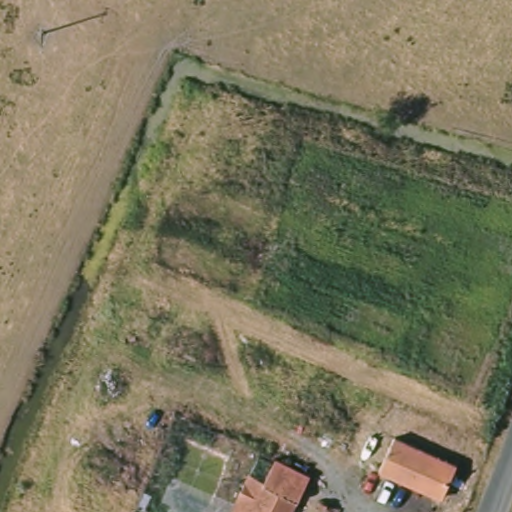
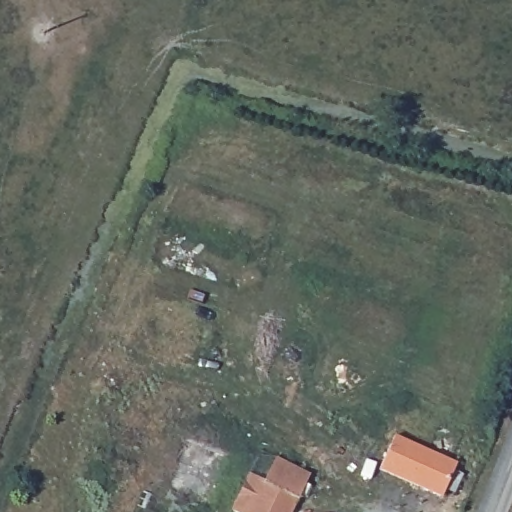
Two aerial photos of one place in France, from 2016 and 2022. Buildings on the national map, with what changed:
unchanged [(474,470),(466,490),(454,485),(451,493),(386,465),(399,436),(474,470)]
unchanged [(295,512),(236,512),(252,477),(264,483),(273,465),(309,480),(295,512)]

